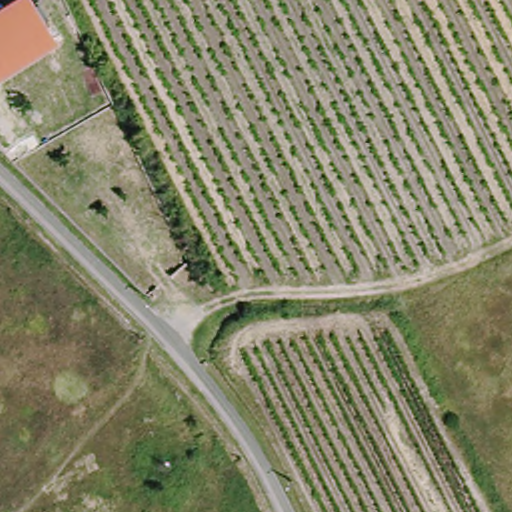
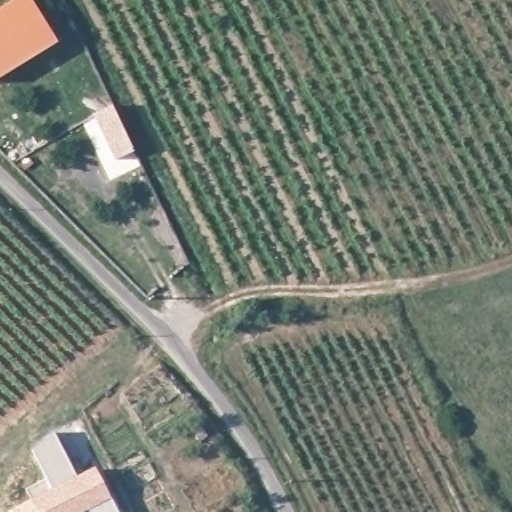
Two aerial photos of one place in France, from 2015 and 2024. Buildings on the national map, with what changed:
unchanged [(0,72),(0,7),(12,0),(31,0),(55,40),(0,72)]
new [(112,108),(135,156),(113,167),(90,119),(112,108)]
new [(26,489),(45,479),(31,449),(54,433),(77,475),(95,466),(118,512),(88,512),(88,510),(84,512),(10,512),(9,510),(31,499),(26,489)]

